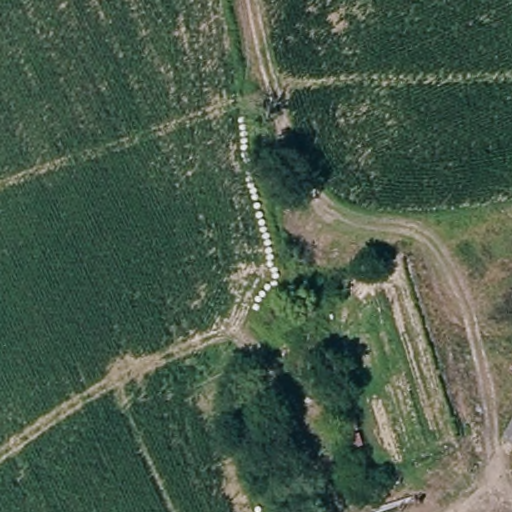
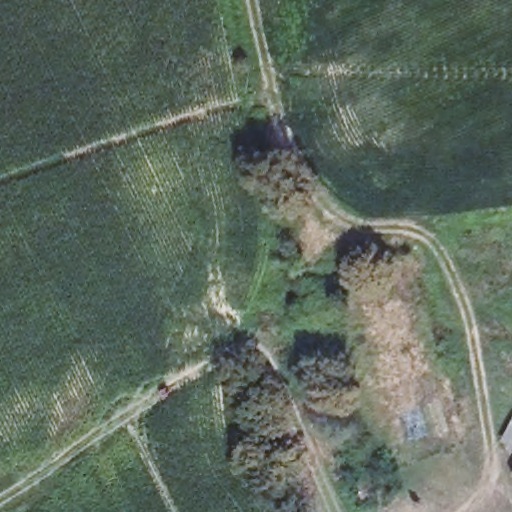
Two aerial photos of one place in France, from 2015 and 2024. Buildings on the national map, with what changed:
unchanged [(508,443),(512,435),(512,445),(508,443)]

